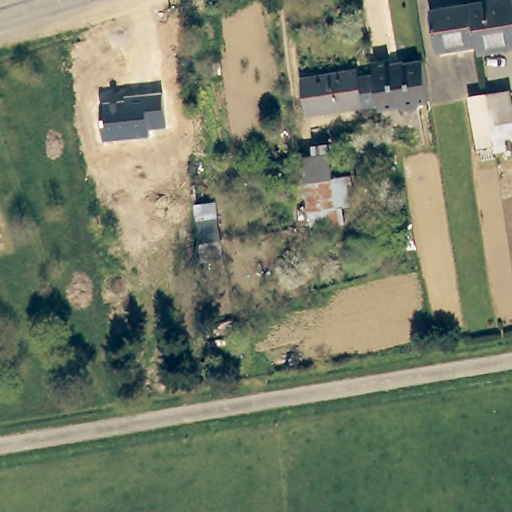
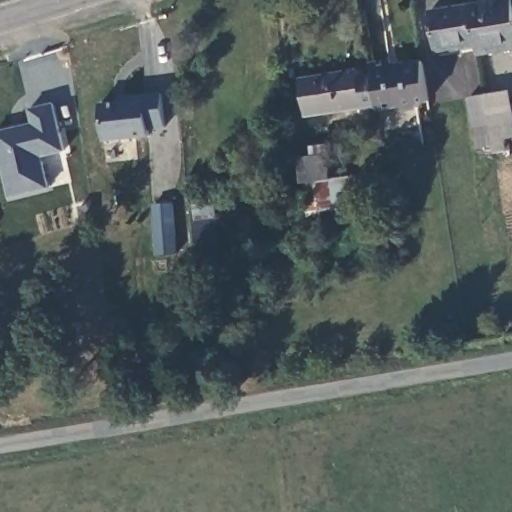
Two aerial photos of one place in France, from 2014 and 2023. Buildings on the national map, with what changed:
unchanged [(469,6),(507,0),(510,0),(512,14),(512,49),(477,55),(476,48),(469,6)]
unchanged [(430,14),(469,6),(476,48),(437,55),(430,14)]
unchanged [(390,67),(422,63),(428,103),(420,105),(417,110),(403,112),(398,108),(377,111),(377,107),(372,77),(369,64),(389,61),(390,67)]
unchanged [(355,73),(355,80),(372,77),(377,107),(305,118),(300,81),(355,73)]
unchanged [(150,130),(150,136),(103,141),(98,101),(121,99),(123,95),(163,91),(166,126),(150,130)]
unchanged [(485,147),(479,100),(511,93),(512,100),(512,143),(485,147)]
new [(41,158),(50,188),(9,197),(0,162),(0,129),(31,122),(28,108),(52,102),(66,151),(41,158)]
unchanged [(343,210),(346,234),(311,237),(308,215),(304,189),(301,161),(329,157),(333,180),(350,177),(358,208),(343,210)]
new [(170,204),(176,254),(156,256),(150,206),(170,204)]

